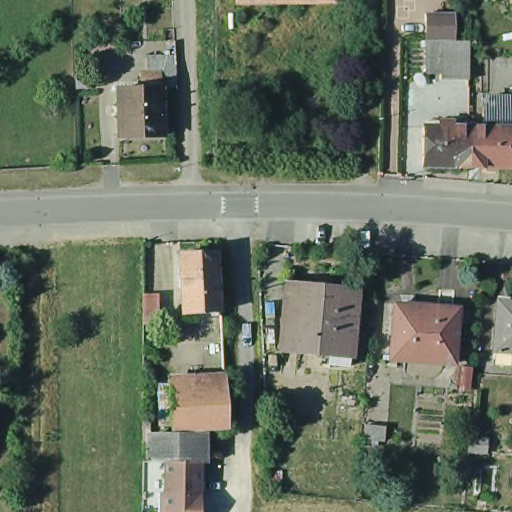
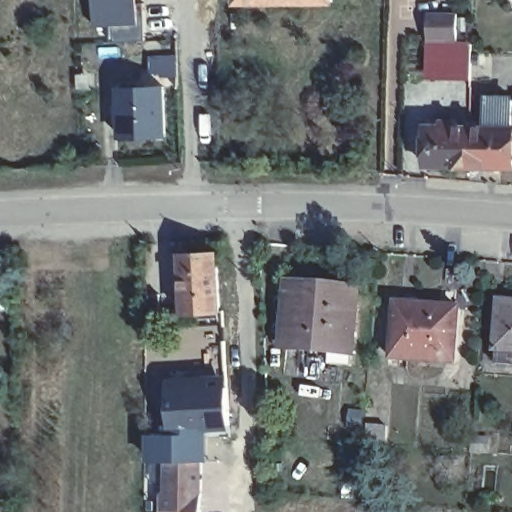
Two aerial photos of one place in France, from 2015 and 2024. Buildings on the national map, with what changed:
new [(111,41),(110,26),(91,28),(88,0),(136,0),(142,39),(111,41)]
unchanged [(332,0),(332,3),(236,2),(236,0),(332,0)]
unchanged [(472,54),(470,81),(440,81),(441,43),(427,43),(427,16),(457,16),(457,43),(472,42),(472,54)]
unchanged [(117,138),(117,90),(140,90),(140,74),(148,74),(148,63),(174,63),(175,93),(160,93),(162,138),(117,138)]
unchanged [(469,169),(424,168),(425,128),(440,129),(440,122),(454,123),(453,129),(470,129),(469,169)]
unchanged [(470,129),(485,129),(485,123),(498,123),(498,129),(512,130),(512,170),(469,169),(470,129)]
unchanged [(217,314),(180,317),(178,255),(214,254),(217,314)]
unchanged [(327,367),(328,353),(278,349),(285,283),(355,289),(350,355),(349,368),(327,367)]
unchanged [(162,323),(148,323),(148,289),(162,289),(162,323)]
unchanged [(499,308),(499,300),(512,302),(512,364),(506,364),(495,363),(495,350),(499,308)]
unchanged [(452,364),(390,358),(394,303),(458,309),(452,364)]
unchanged [(215,373),(214,345),(227,344),(228,373),(215,373)]
unchanged [(212,427),(173,429),(171,394),(230,392),(231,427),(212,427)]
unchanged [(390,441),(370,439),(372,424),(392,426),(390,441)]
unchanged [(490,438),(489,452),(474,451),(475,436),(490,438)]
unchanged [(154,438),(205,439),(205,464),(204,464),(185,464),(178,464),(169,464),(153,464),(154,438)]
unchanged [(178,464),(185,464),(204,464),(203,512),(162,512),(162,496),(168,496),(169,464),(178,464)]

